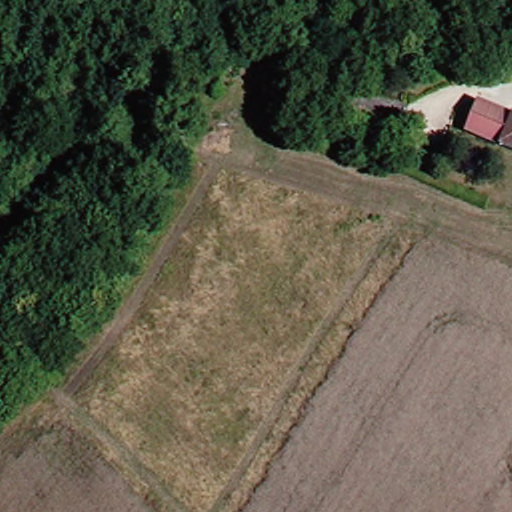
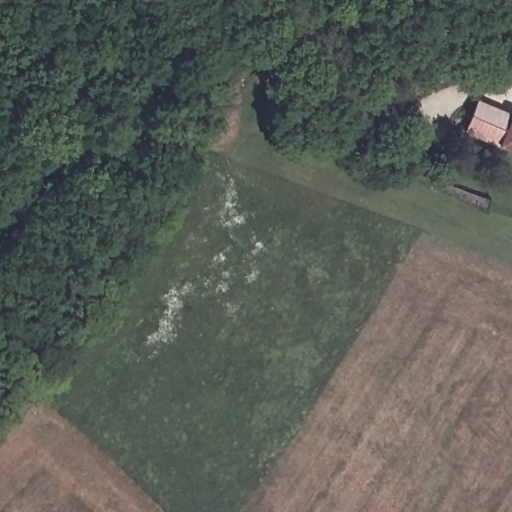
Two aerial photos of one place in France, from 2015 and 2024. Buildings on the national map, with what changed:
unchanged [(512,149),(473,131),(487,103),(512,115),(512,149)]

